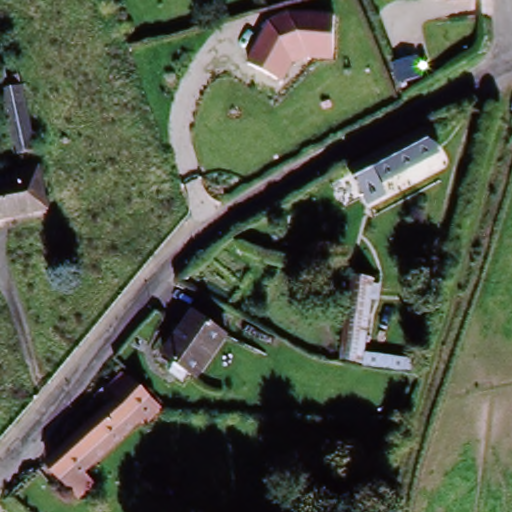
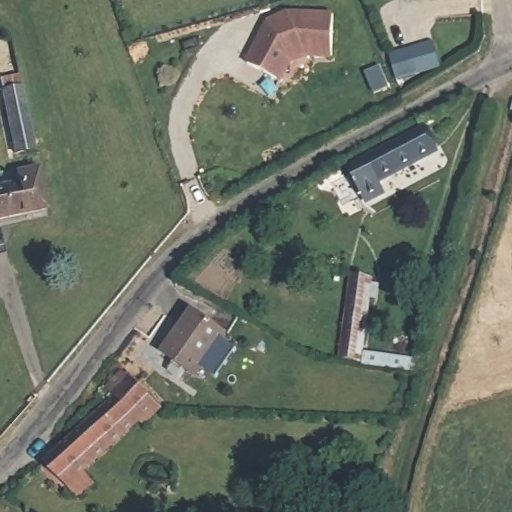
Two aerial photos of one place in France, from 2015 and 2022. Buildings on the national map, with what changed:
unchanged [(450,0),(473,0),(451,1),(450,0)]
unchanged [(296,55),(278,88),(243,66),(265,22),(286,25),(285,14),(336,14),(329,66),(296,55)]
unchanged [(19,159),(0,94),(0,89),(19,83),(38,153),(19,159)]
unchanged [(439,155),(387,183),(384,178),(372,183),(364,162),(424,128),(439,155)]
unchanged [(10,172),(34,166),(45,204),(0,219),(0,188),(14,184),(10,172)]
unchanged [(368,347),(345,346),(347,282),(370,282),(368,347)]
unchanged [(191,316),(224,334),(201,378),(189,370),(166,361),(177,342),(191,316)]
unchanged [(162,410),(142,431),(138,425),(84,474),(95,484),(79,500),(43,460),(128,379),(162,410)]
unchanged [(328,512),(338,462),(359,466),(350,512),(328,512)]

